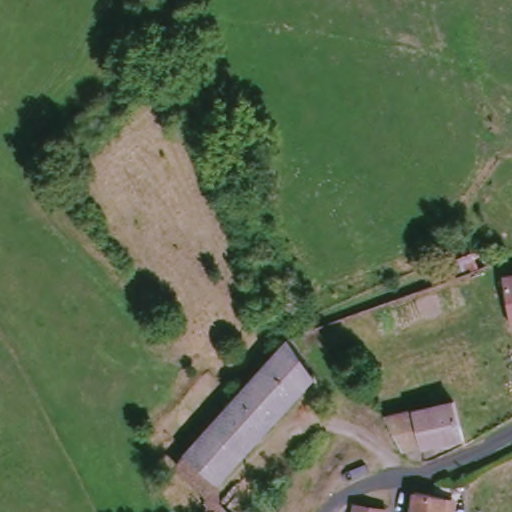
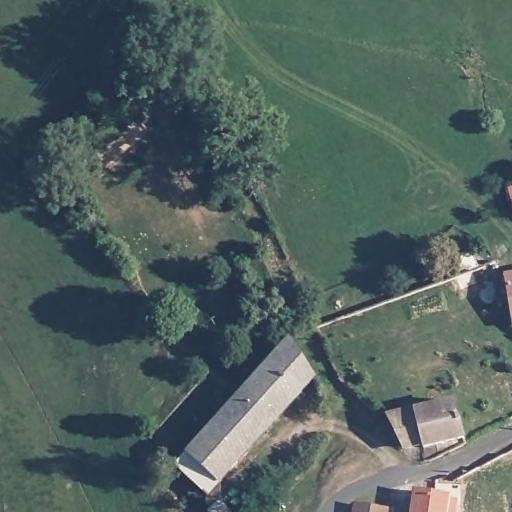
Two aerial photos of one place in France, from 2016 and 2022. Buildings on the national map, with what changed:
unchanged [(512,275),(512,309),(505,276),(512,275)]
unchanged [(182,462),(234,405),(287,346),(319,376),(217,482),(209,491),(182,462)]
unchanged [(411,453),(410,445),(390,447),(387,416),(452,405),(453,411),(457,446),(411,453)]
unchanged [(209,491),(217,482),(217,502),(227,512),(210,512),(172,472),(182,462),(209,491)]
unchanged [(447,508),(446,512),(411,512),(411,504),(447,508)]

